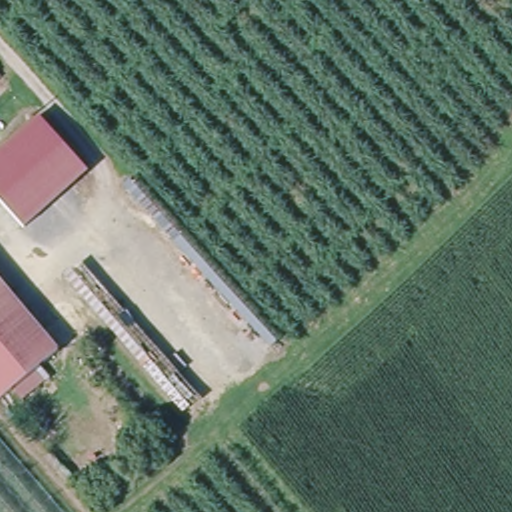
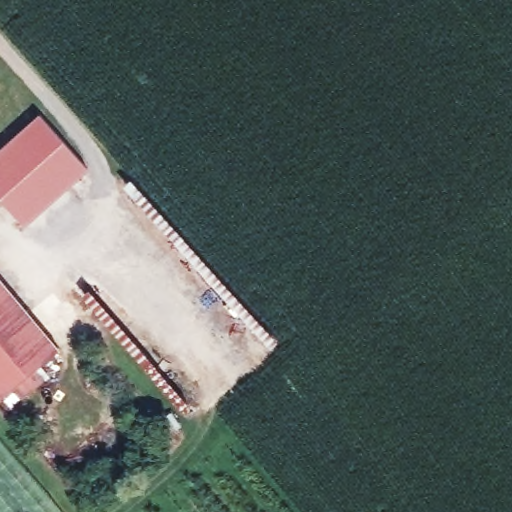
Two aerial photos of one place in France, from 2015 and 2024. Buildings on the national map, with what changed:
unchanged [(0,208),(0,180),(1,180),(0,178),(0,159),(44,124),(85,169),(16,227),(0,208)]
unchanged [(0,390),(0,279),(55,348),(0,390)]

